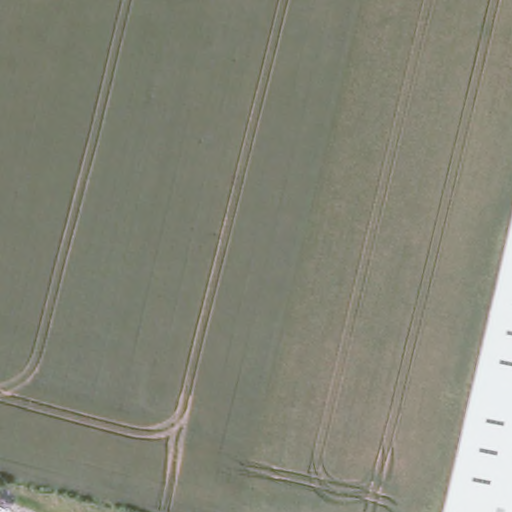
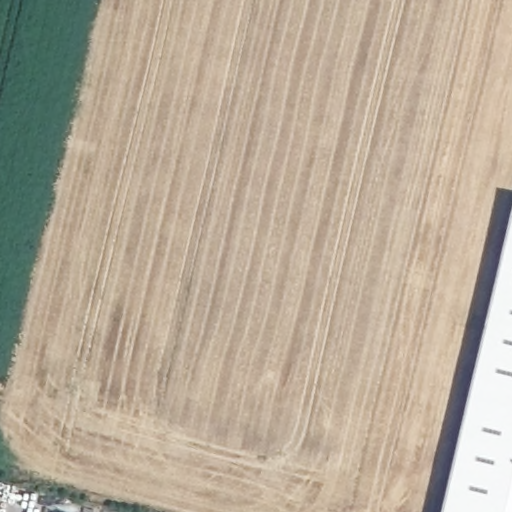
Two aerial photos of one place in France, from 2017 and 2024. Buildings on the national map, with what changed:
unchanged [(512,204),(512,512),(442,512),(512,204)]

